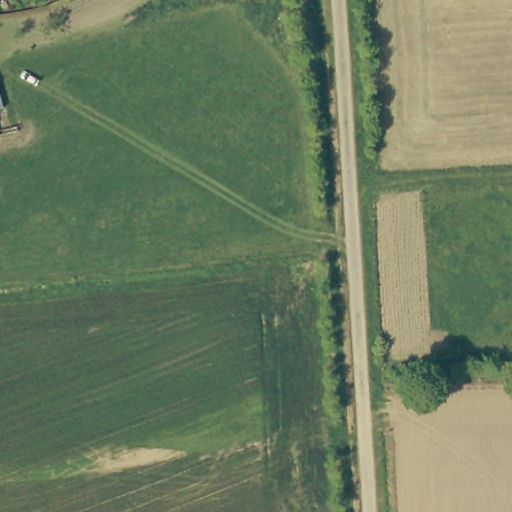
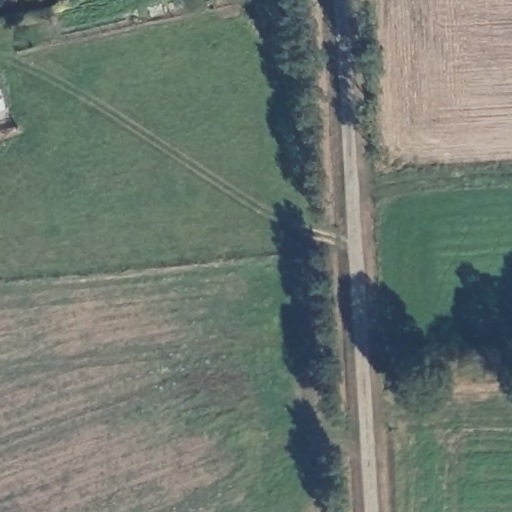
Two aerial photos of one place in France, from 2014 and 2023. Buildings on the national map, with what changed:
unchanged [(9,110),(0,112),(0,77),(9,110)]

